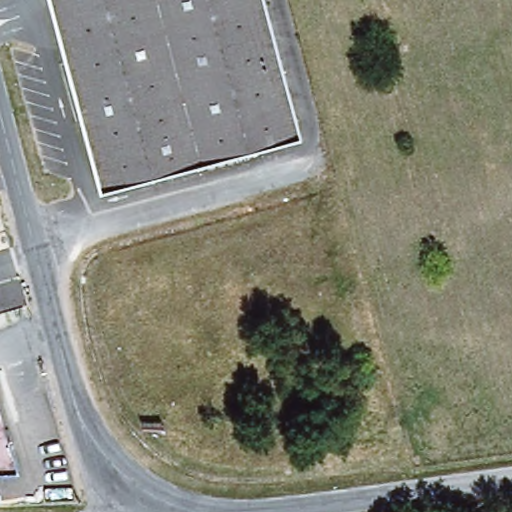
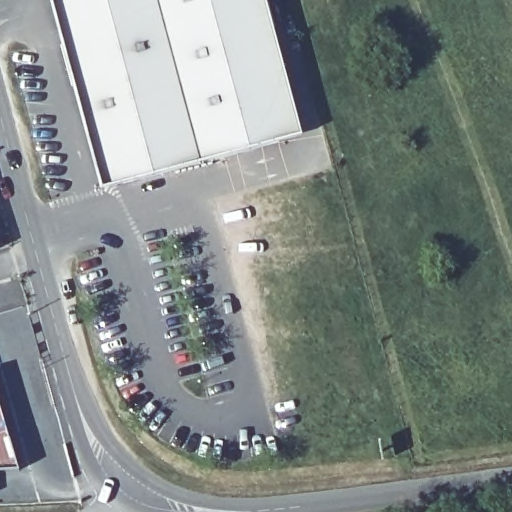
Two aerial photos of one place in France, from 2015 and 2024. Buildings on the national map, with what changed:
unchanged [(125,180),(96,163),(53,0),(151,0),(196,161),(125,180)]
unchanged [(278,140),(196,161),(151,0),(263,0),(293,116),(278,140)]
unchanged [(18,469),(0,470),(0,402),(18,469)]

